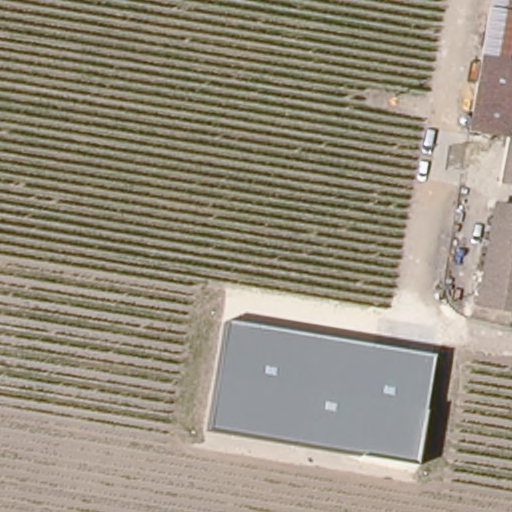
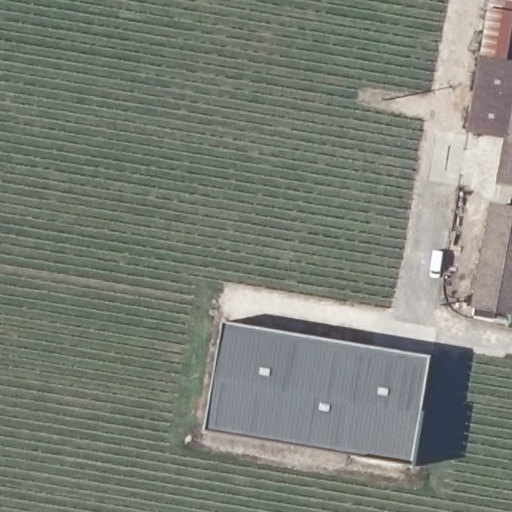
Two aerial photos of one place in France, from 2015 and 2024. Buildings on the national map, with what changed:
unchanged [(504,191),(507,139),(477,135),(469,134),(480,54),(487,0),(510,0),(502,57),(512,59),(512,192),(504,191)]
unchanged [(486,303),(503,207),(512,209),(512,307),(486,303)]
unchanged [(415,466),(207,431),(224,322),(431,356),(415,466)]

